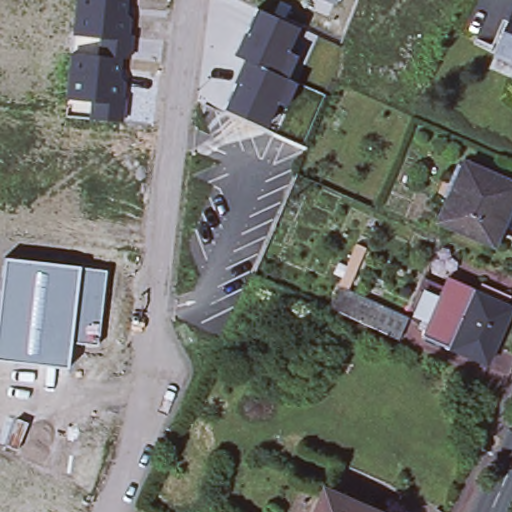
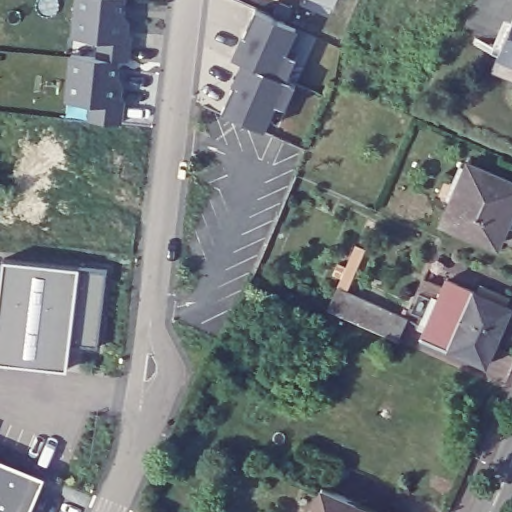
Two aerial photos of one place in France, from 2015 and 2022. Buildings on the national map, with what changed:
unchanged [(68,52),(95,55),(97,37),(72,35),(74,0),(127,0),(127,15),(129,20),(127,57),(122,57),(120,79),(125,85),(122,121),(88,119),(89,99),(65,98),(68,52)]
unchanged [(335,3),(327,0),(336,0),(335,3)]
unchanged [(256,9),(298,27),(288,50),(297,54),(286,78),(295,82),(285,107),(275,103),(265,128),(223,109),(243,58),(234,54),(256,9)]
unchanged [(512,13),(512,73),(490,63),(496,50),(510,19),(512,13)]
unchanged [(512,180),(512,191),(499,220),(505,222),(496,241),(442,218),(467,161),(512,180)]
unchanged [(355,247),(364,250),(345,292),(407,320),(397,342),(365,328),(327,311),(337,288),(355,247)]
unchanged [(80,267),(107,271),(98,345),(72,341),(68,367),(0,360),(0,293),(4,258),(80,267)]
unchanged [(474,294),(448,350),(420,337),(428,320),(410,312),(418,293),(437,301),(446,281),(474,294)]
unchanged [(510,310),(485,366),(448,350),(474,294),(510,310)]
new [(0,512),(0,468),(42,484),(30,512),(0,512)]
unchanged [(377,510),(377,512),(307,512),(319,485),(377,510)]

